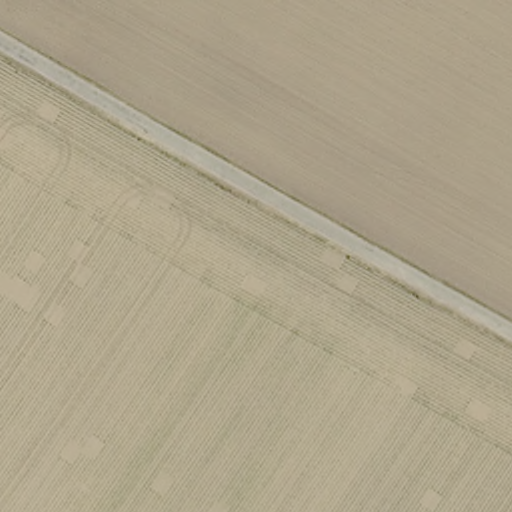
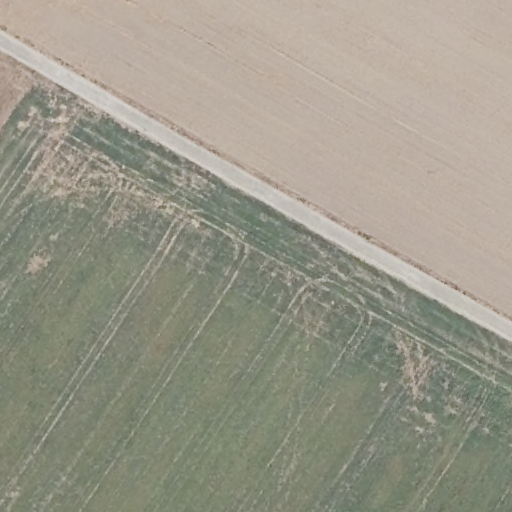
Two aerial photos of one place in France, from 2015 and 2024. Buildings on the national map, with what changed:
[]

